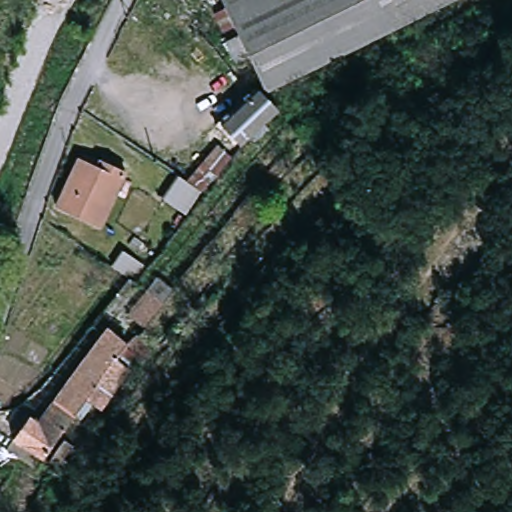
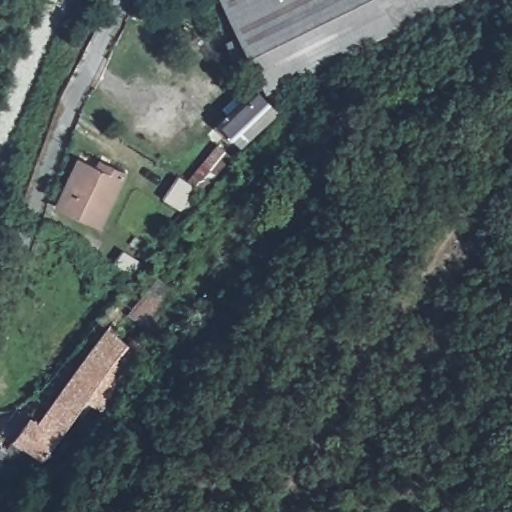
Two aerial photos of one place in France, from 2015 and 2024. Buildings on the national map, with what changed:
unchanged [(307,85),(275,101),(247,49),(235,55),(226,38),(239,30),(224,0),(469,0),(457,6),(307,85)]
unchanged [(234,145),(219,125),(257,93),(274,114),(234,145)]
unchanged [(119,173),(94,226),(57,208),(81,155),(119,173)]
unchanged [(189,206),(166,191),(180,172),(203,187),(189,206)]
unchanged [(123,247),(143,261),(133,274),(113,262),(123,247)]
unchanged [(148,287),(164,300),(144,324),(128,310),(148,287)]
unchanged [(110,332),(125,346),(114,359),(126,371),(99,408),(88,400),(78,414),(56,398),(102,335),(110,332)]
unchanged [(125,346),(138,333),(154,347),(141,362),(125,346)]
unchanged [(38,421),(56,398),(78,414),(44,462),(13,437),(31,416),(38,421)]
unchanged [(2,441),(18,455),(6,468),(0,463),(0,444),(2,441)]

